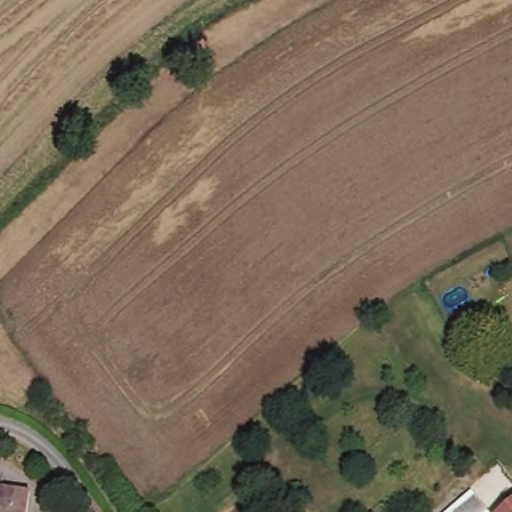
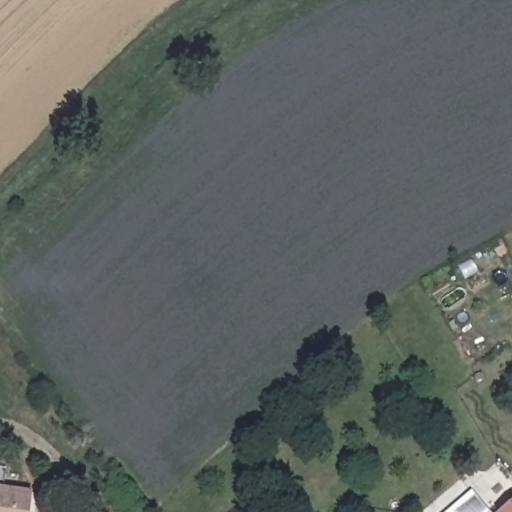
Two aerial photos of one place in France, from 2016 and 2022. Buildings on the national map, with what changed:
unchanged [(30,512),(0,512),(0,488),(32,492),(30,512)]
unchanged [(501,512),(512,502),(512,512),(501,512)]

